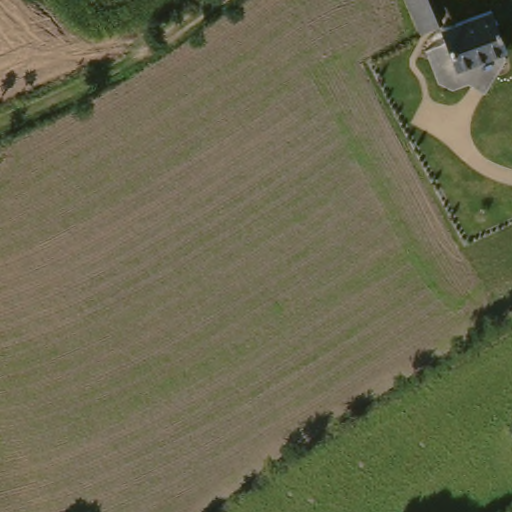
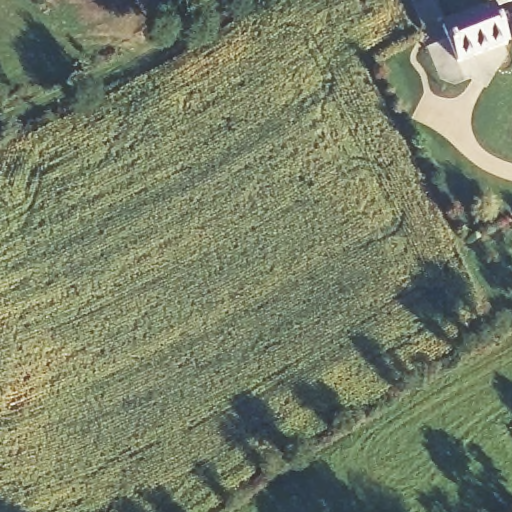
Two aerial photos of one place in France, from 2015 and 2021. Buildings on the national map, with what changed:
unchanged [(449,14),(429,25),(414,0),(441,0),(449,14)]
unchanged [(511,44),(465,66),(448,29),(494,7),(511,44)]

